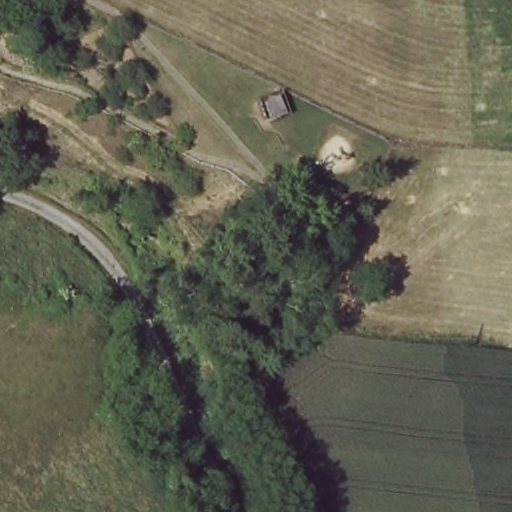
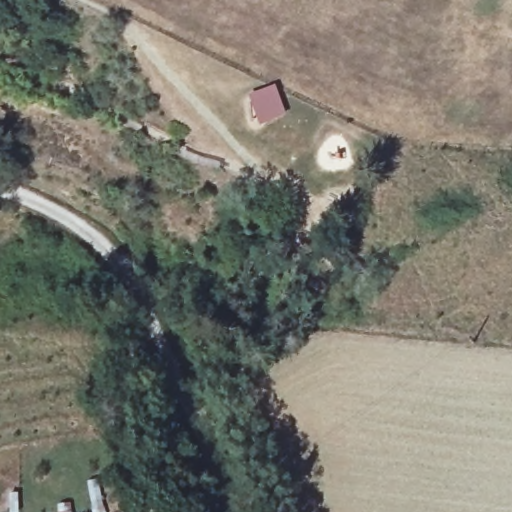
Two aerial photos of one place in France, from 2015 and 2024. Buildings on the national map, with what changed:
new [(277,86),(287,117),(261,126),(250,96),(277,86)]

